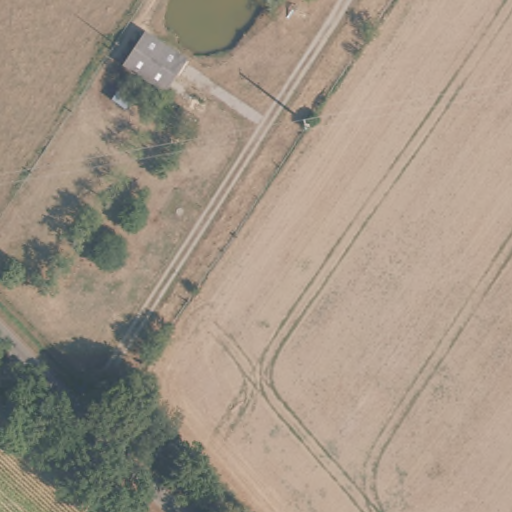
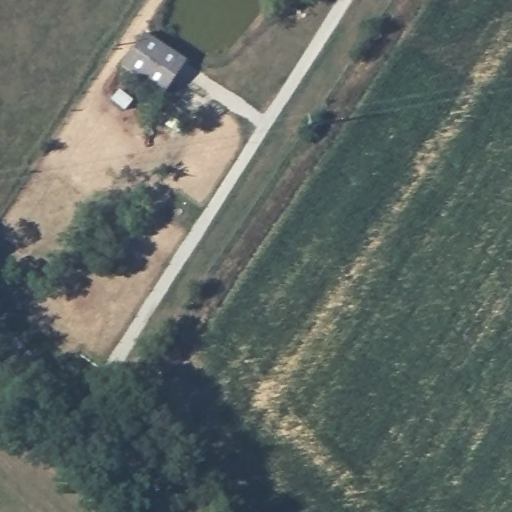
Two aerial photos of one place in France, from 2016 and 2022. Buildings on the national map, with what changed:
unchanged [(147,35),(189,63),(167,96),(125,68),(147,35)]

